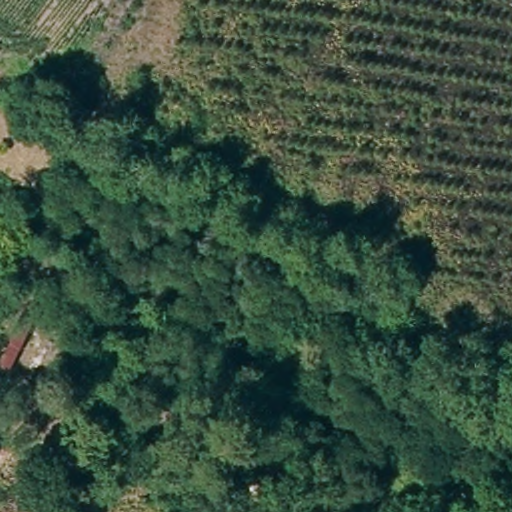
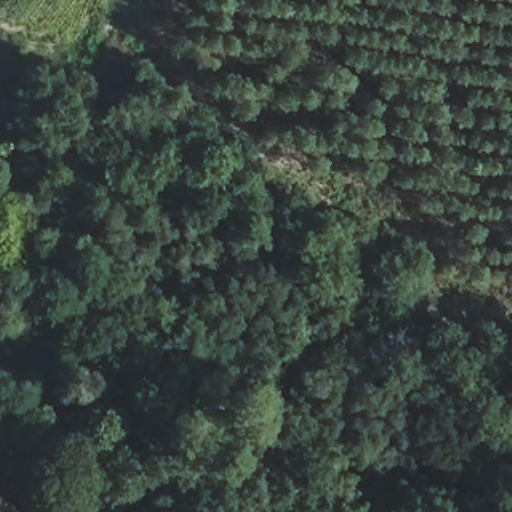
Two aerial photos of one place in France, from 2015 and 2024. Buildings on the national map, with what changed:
[]

